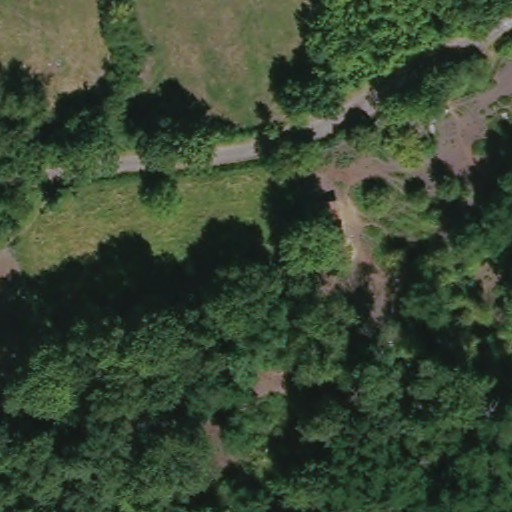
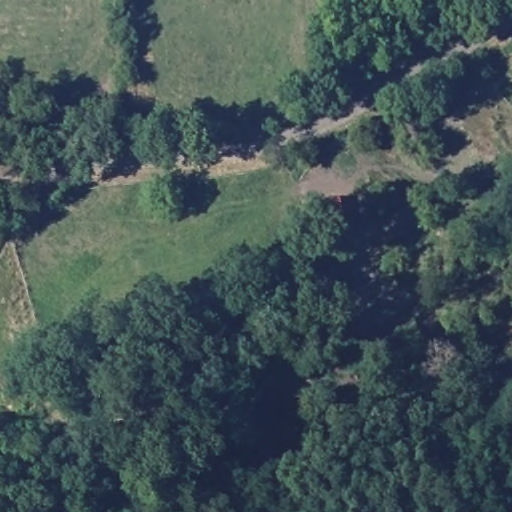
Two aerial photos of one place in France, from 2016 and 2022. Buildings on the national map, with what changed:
unchanged [(415,126),(421,136),(412,144),(389,114),(418,97),(432,116),(415,126)]
unchanged [(340,220),(345,257),(322,261),(317,223),(307,221),(305,199),(328,196),(340,220)]

